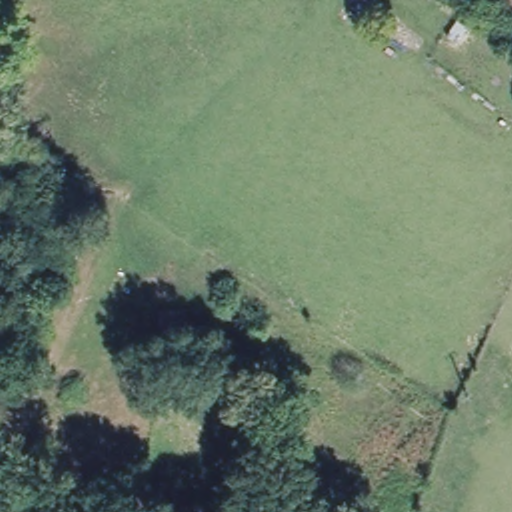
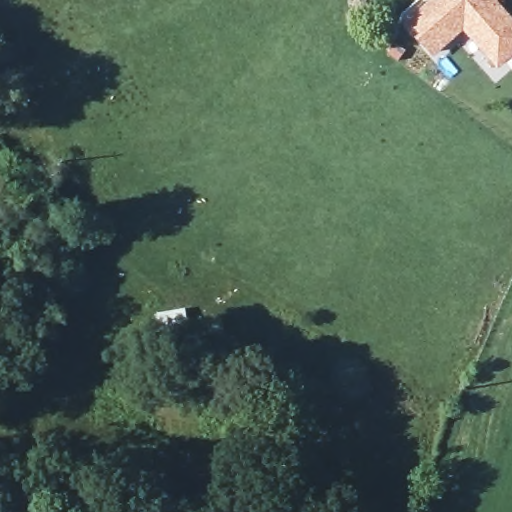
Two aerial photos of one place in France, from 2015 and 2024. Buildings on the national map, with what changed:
new [(496,1),(512,19),(512,58),(504,65),(469,26),(440,54),(414,26),(443,0),(495,0),(496,1)]
new [(496,1),(495,0),(498,0),(496,1)]
unchanged [(185,305),(190,355),(163,360),(154,315),(185,305)]

